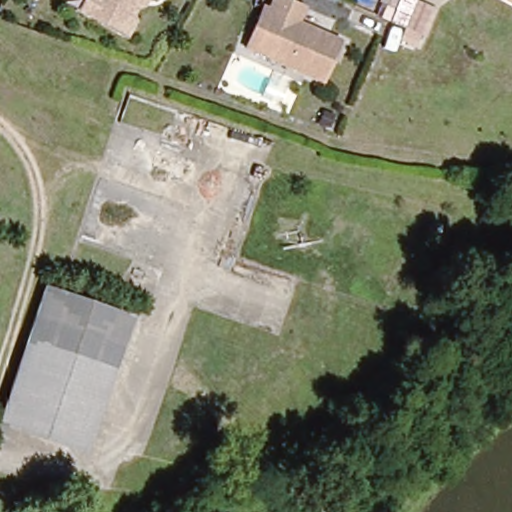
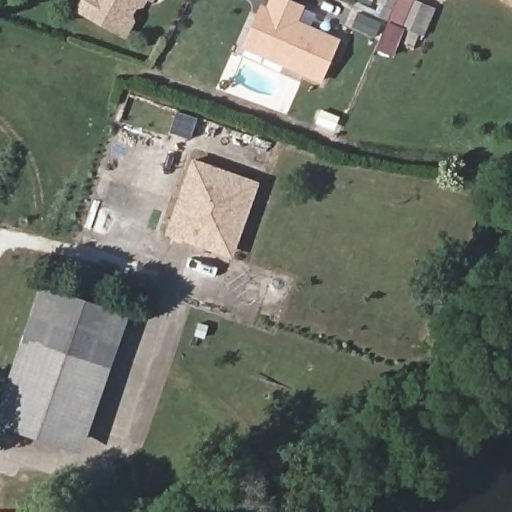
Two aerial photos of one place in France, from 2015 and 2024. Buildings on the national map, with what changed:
unchanged [(129,0),(131,2),(116,29),(84,11),(75,5),(78,0),(129,0)]
unchanged [(146,0),(148,0),(147,1),(146,0)]
unchanged [(241,41),(257,5),(262,6),(265,0),(286,0),(299,6),(293,20),(338,40),(323,78),(284,61),(241,41)]
unchanged [(421,0),(434,5),(423,36),(398,26),(409,0),(421,0)]
unchanged [(502,0),(512,0),(512,6),(502,0)]
new [(260,182),(232,259),(164,235),(191,158),(260,182)]
unchanged [(113,305),(105,335),(37,314),(46,285),(113,305)]
unchanged [(37,314),(105,335),(85,407),(15,389),(19,375),(37,314)]
unchanged [(75,446),(4,426),(15,389),(85,407),(75,446)]

